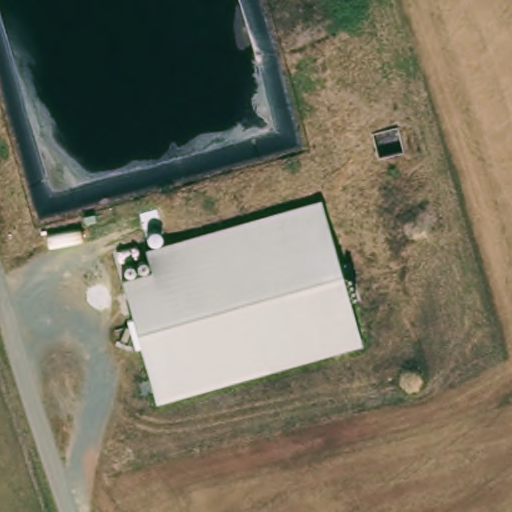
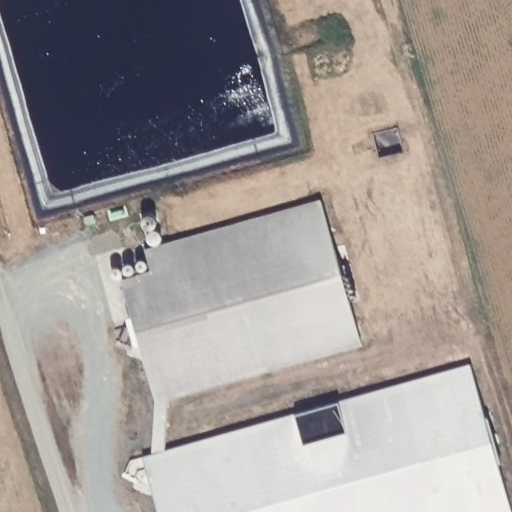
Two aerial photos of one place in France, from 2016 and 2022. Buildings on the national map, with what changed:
unchanged [(364,345),(157,402),(123,278),(127,277),(153,270),(149,257),(147,247),(323,198),(364,345)]
new [(512,512),(159,512),(143,456),(470,364),(512,512)]

